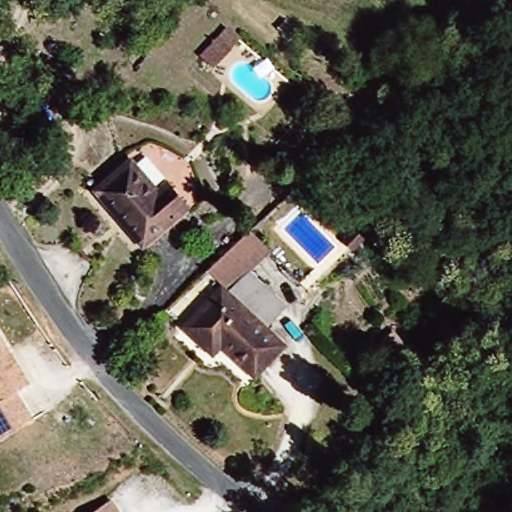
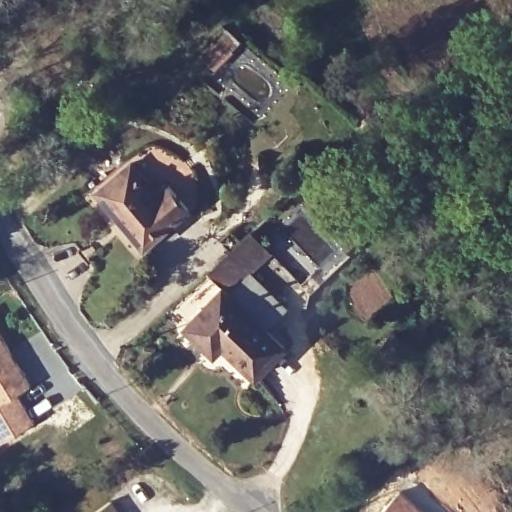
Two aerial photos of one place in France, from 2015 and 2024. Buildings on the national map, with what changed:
unchanged [(230,34),(241,47),(221,66),(209,53),(230,34)]
unchanged [(95,196),(125,166),(153,194),(160,187),(183,210),(145,248),(95,196)]
unchanged [(365,249),(352,236),(364,225),(376,236),(365,249)]
unchanged [(287,349),(255,379),(223,346),(212,356),(167,308),(251,228),(270,248),(252,267),(230,288),(265,326),(287,349)]
unchanged [(289,304),(265,326),(230,288),(252,267),(289,304)]
unchanged [(37,421),(3,442),(0,438),(0,333),(32,385),(20,393),(37,421)]
new [(427,512),(380,512),(400,488),(427,512)]
unchanged [(121,512),(94,512),(112,499),(121,512)]

